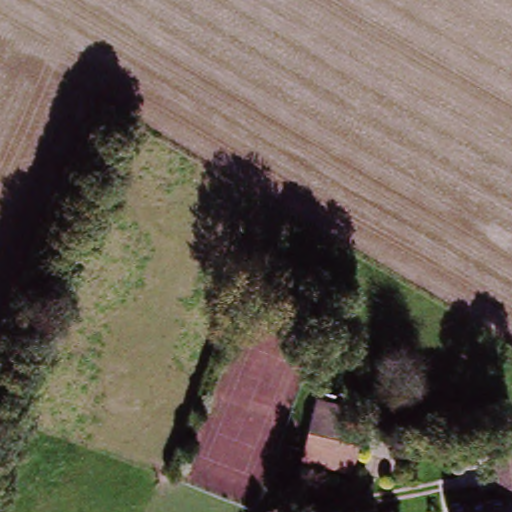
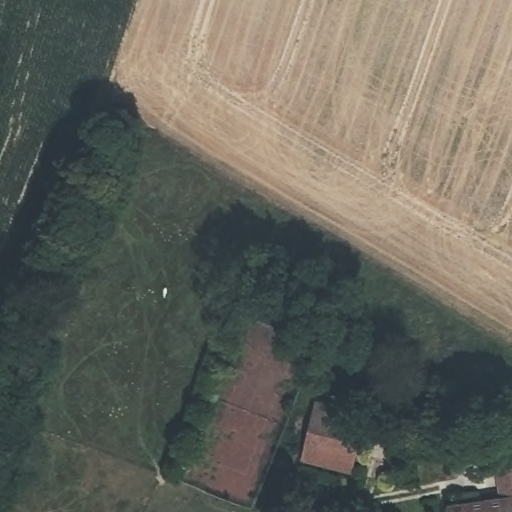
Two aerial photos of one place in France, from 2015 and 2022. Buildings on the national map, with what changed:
unchanged [(308,412),(405,429),(396,485),(298,467),(308,412)]
unchanged [(512,512),(447,512),(447,511),(512,501),(512,512)]

